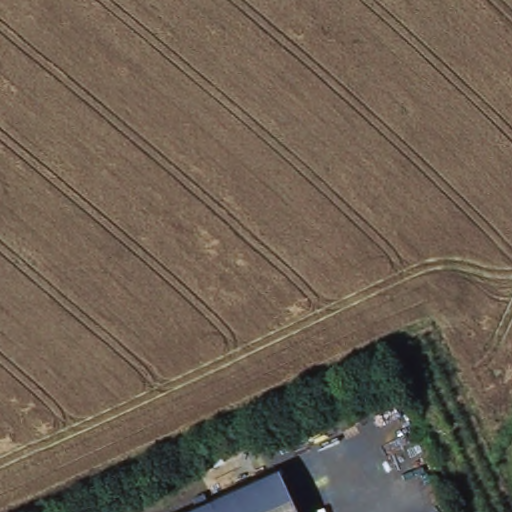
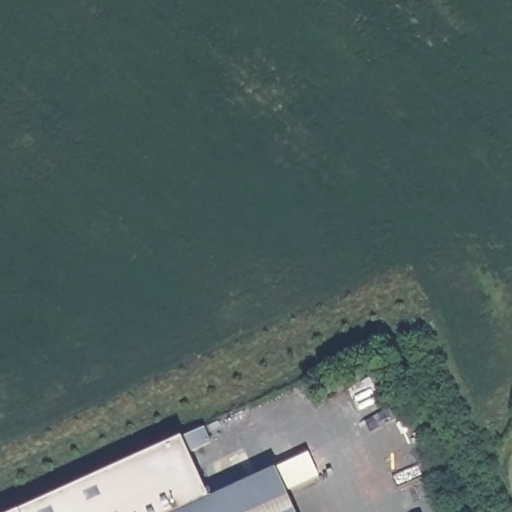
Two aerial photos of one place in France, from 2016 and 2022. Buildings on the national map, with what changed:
new [(182,436),(205,426),(211,442),(189,451),(209,498),(179,512),(15,512),(182,436)]
unchanged [(276,468),(296,512),(179,512),(276,468)]

